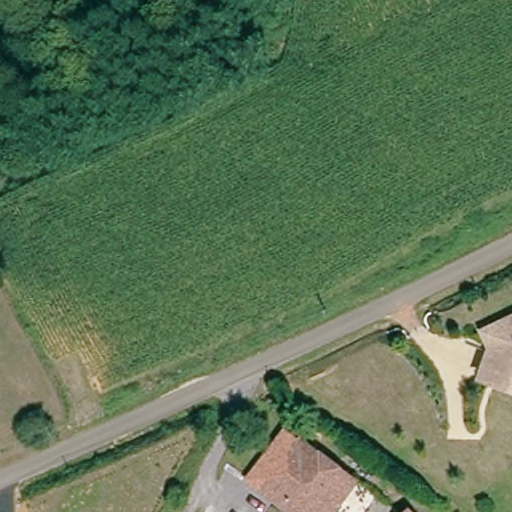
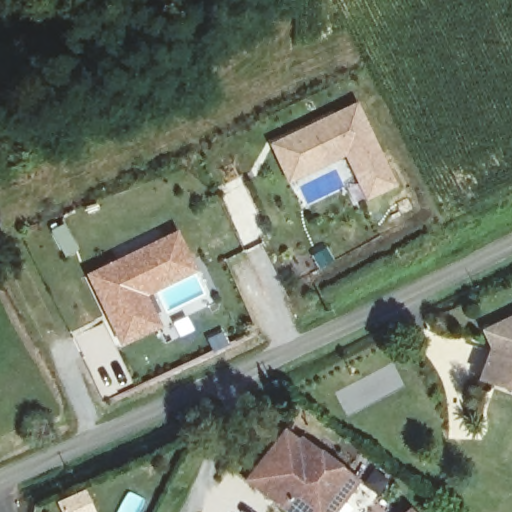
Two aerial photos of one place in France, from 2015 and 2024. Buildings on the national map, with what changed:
new [(398,187),(366,203),(345,157),(287,184),(267,143),(357,102),(398,187)]
new [(198,272),(148,297),(163,328),(121,347),(85,275),(177,230),(198,272)]
unchanged [(504,386),(490,382),(499,351),(490,334),(512,321),(512,388),(504,386)]
unchanged [(262,493),(298,439),(356,478),(334,512),(287,512),(262,493)]

